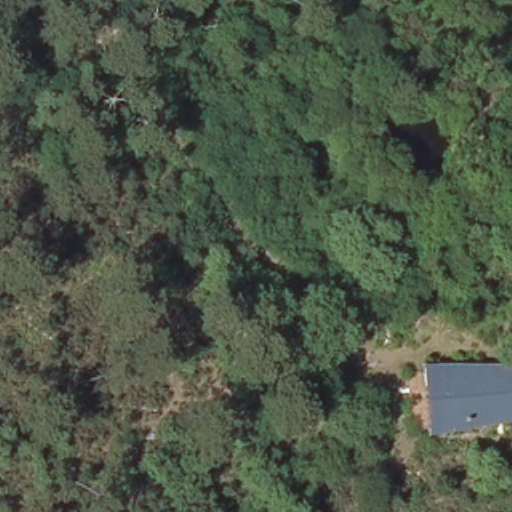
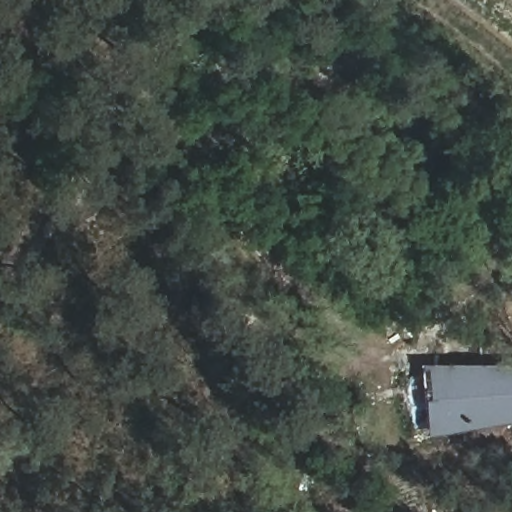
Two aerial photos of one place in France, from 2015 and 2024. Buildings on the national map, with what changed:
unchanged [(512,370),(512,427),(423,440),(421,371),(512,370)]

